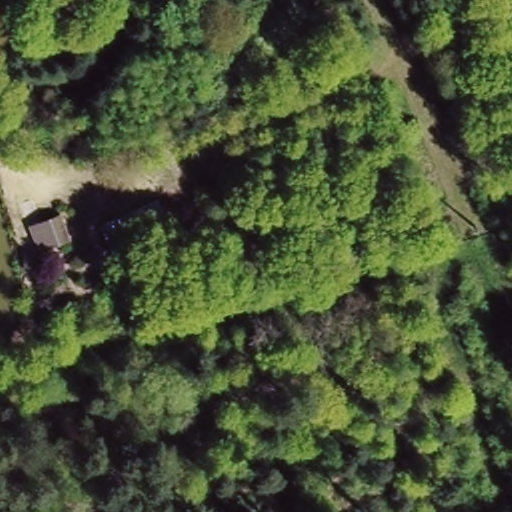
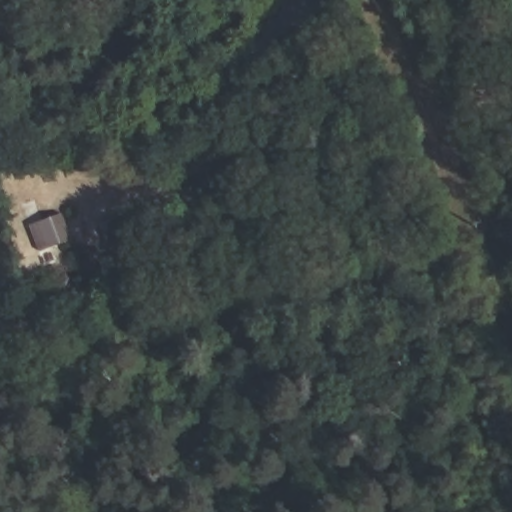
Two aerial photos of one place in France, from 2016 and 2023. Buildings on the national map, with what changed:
unchanged [(30,221),(62,210),(72,245),(39,252),(30,221)]

